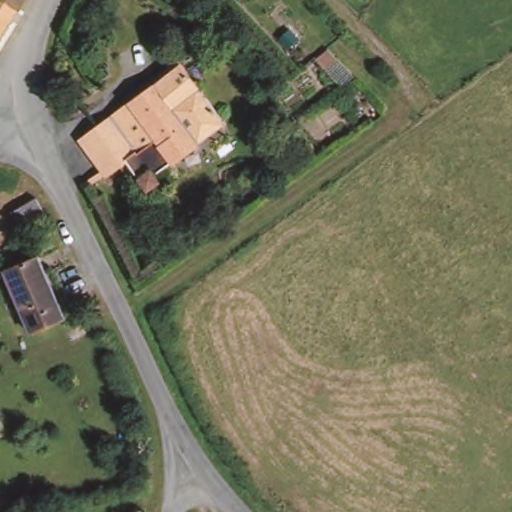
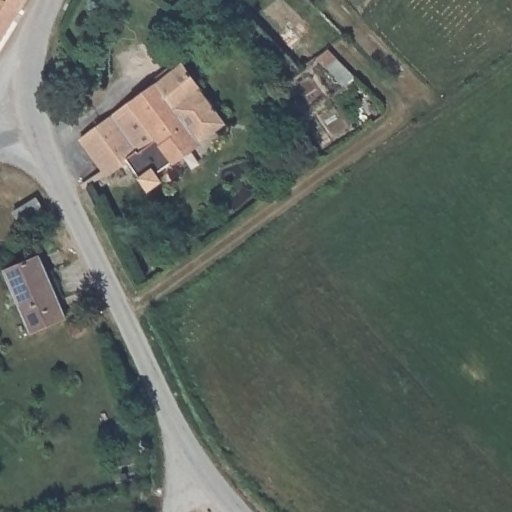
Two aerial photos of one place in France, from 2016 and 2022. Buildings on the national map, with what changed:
unchanged [(0,47),(0,0),(4,0),(23,12),(0,47)]
unchanged [(4,0),(30,0),(23,12),(4,0)]
unchanged [(201,108),(218,97),(236,119),(220,131),(149,182),(128,157),(99,178),(74,147),(102,126),(172,72),(201,108)]
unchanged [(33,210),(12,221),(3,204),(25,193),(33,210)]
unchanged [(36,254),(65,321),(33,335),(2,269),(36,254)]

